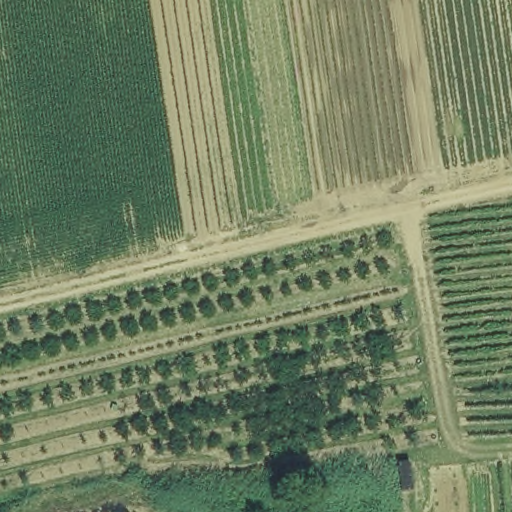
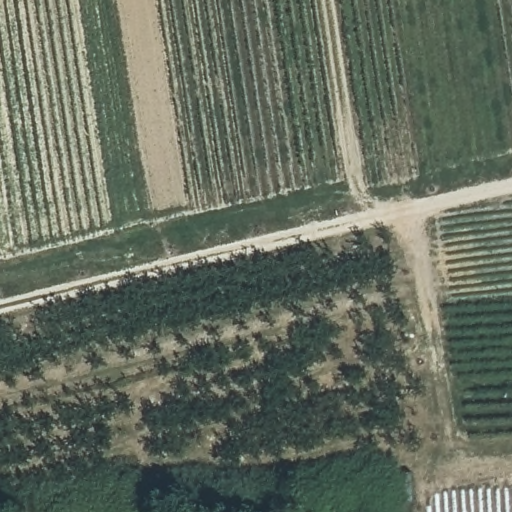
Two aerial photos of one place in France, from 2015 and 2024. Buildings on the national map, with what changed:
unchanged [(422,499),(403,502),(401,460),(420,462),(422,499)]

